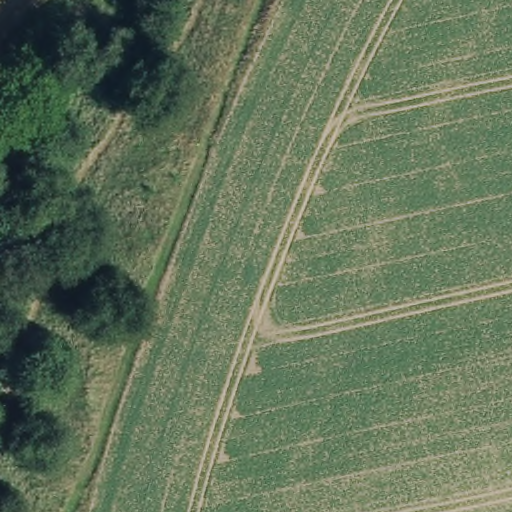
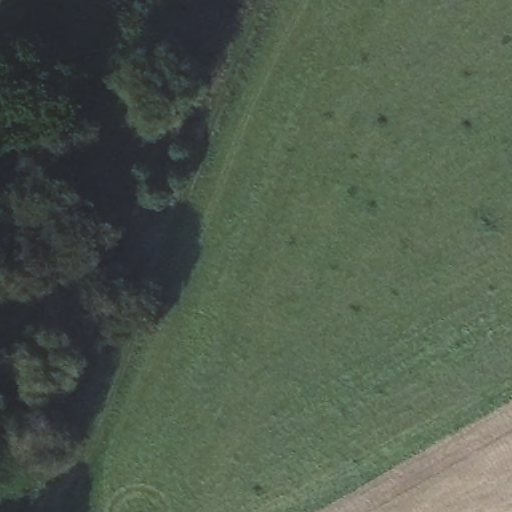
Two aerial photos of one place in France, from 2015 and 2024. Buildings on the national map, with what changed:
[]

